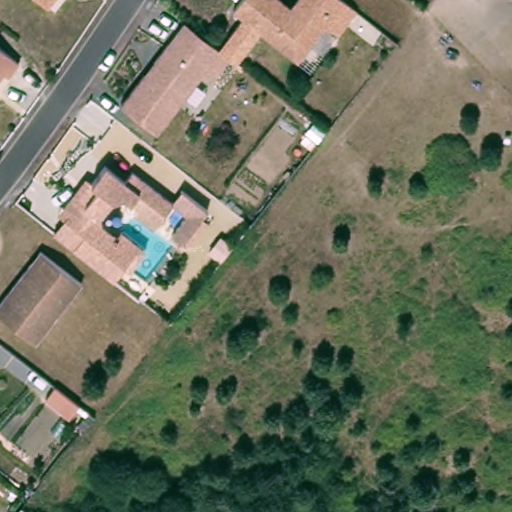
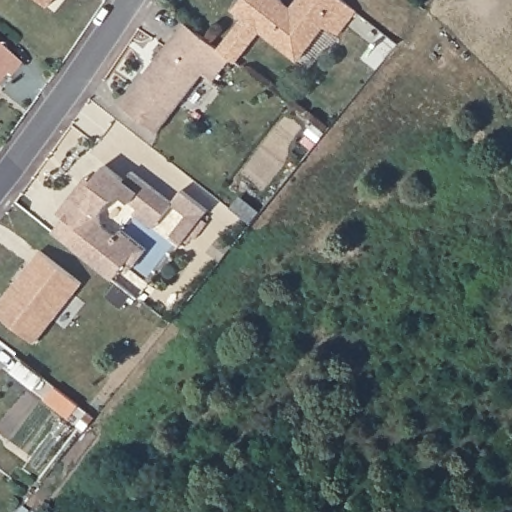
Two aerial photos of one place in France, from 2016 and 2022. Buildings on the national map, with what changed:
unchanged [(45,0),(56,0),(52,5),(45,0)]
unchanged [(286,0),(293,5),(297,0),(351,0),(362,9),(342,34),(330,24),(329,24),(322,20),(311,35),(317,39),(301,60),(239,10),(246,0),(286,0)]
unchanged [(236,54),(218,79),(207,71),(163,129),(128,102),(189,18),(236,54)]
unchanged [(21,58),(7,74),(3,70),(0,74),(0,42),(21,58)]
unchanged [(62,220),(56,214),(85,177),(92,182),(105,166),(124,181),(131,172),(170,202),(180,189),(206,209),(201,217),(205,219),(185,246),(170,234),(185,217),(171,206),(151,229),(132,214),(136,209),(127,201),(123,206),(114,199),(100,212),(101,225),(116,236),(120,231),(144,250),(129,269),(125,266),(114,279),(73,249),(52,232),(62,220)]
unchanged [(83,275),(40,337),(0,309),(0,304),(40,245),(83,275)]
unchanged [(90,407),(81,419),(57,402),(66,389),(90,407)]

